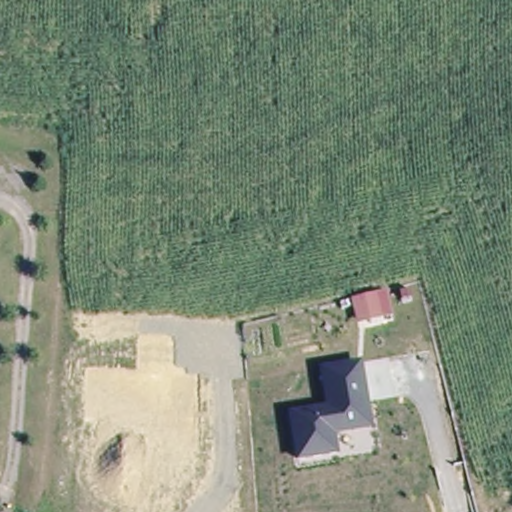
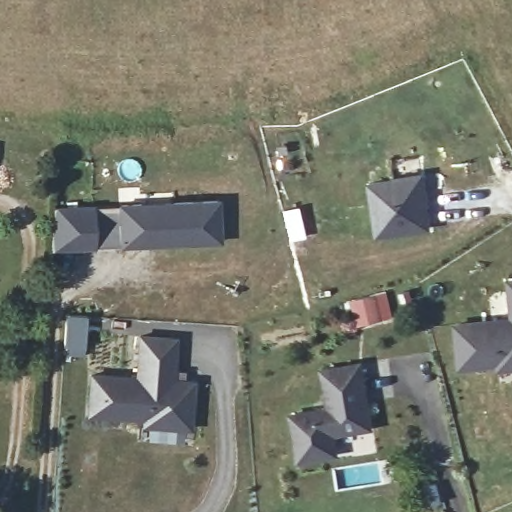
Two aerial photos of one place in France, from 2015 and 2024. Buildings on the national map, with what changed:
new [(366,182),(423,174),(431,230),(375,238),(366,182)]
new [(221,200),(222,244),(55,252),(56,206),(221,200)]
new [(452,322),(508,317),(505,280),(512,279),(512,371),(497,372),(496,367),(458,372),(452,322)]
new [(357,326),(351,300),(374,295),(385,291),(391,316),(382,320),(357,326)]
new [(141,421),(86,416),(89,371),(135,375),(137,336),(177,339),(175,380),(193,381),(191,430),(142,426),(141,421)]
unchanged [(326,405),(319,367),(362,360),(373,430),(337,435),(340,455),(295,461),(287,413),(326,405)]

